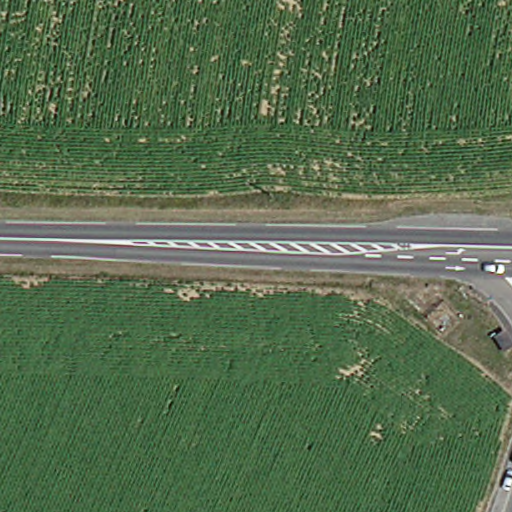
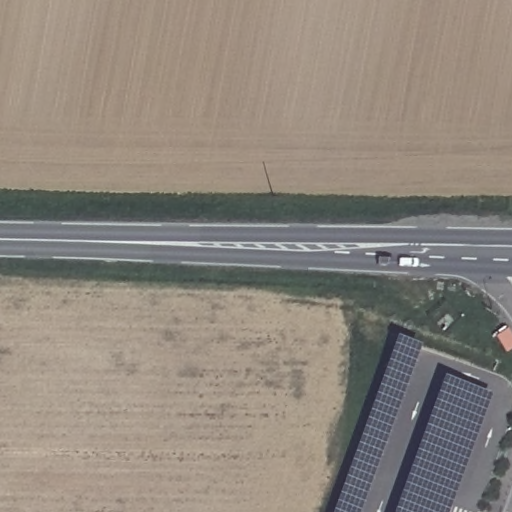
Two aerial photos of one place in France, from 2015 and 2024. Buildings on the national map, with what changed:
new [(360,512),(333,512),(397,338),(421,347),(360,512)]
new [(443,378),(491,396),(449,512),(395,512),(443,378)]

